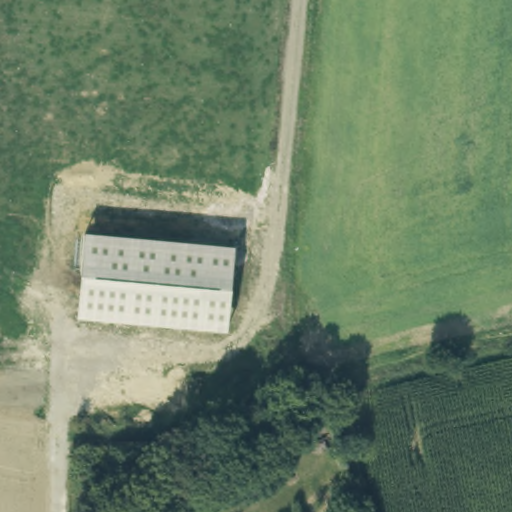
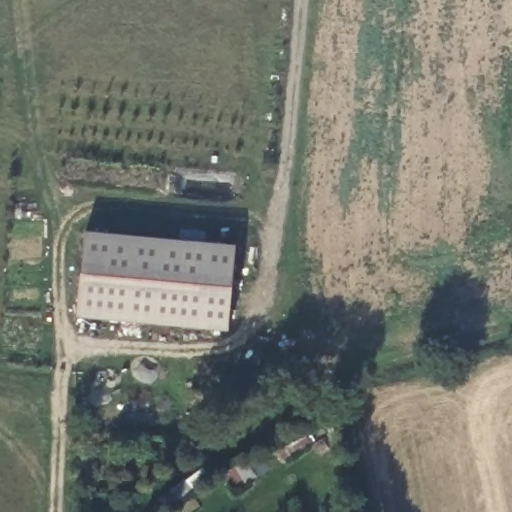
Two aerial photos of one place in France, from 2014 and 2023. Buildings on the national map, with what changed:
unchanged [(227,331),(77,317),(85,235),(235,249),(227,331)]

